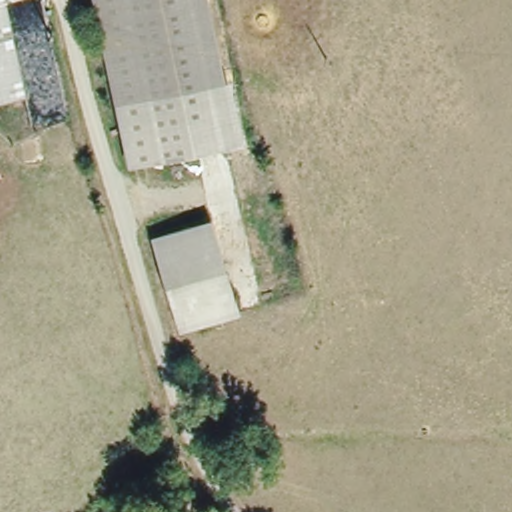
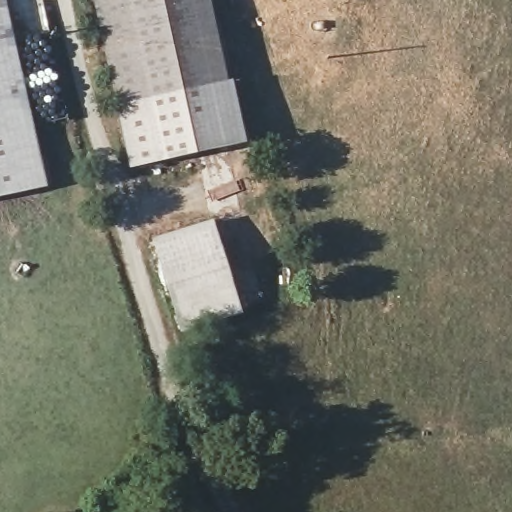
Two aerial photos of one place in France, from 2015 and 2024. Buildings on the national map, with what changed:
unchanged [(1,0),(21,94),(0,97),(0,0),(1,0)]
unchanged [(199,0),(206,35),(119,85),(98,0),(199,0)]
unchanged [(218,0),(223,24),(233,80),(219,87),(206,35),(199,0),(218,0)]
unchanged [(219,87),(231,147),(136,168),(119,85),(206,35),(219,87)]
new [(26,92),(47,188),(0,198),(0,97),(21,94),(26,92)]
unchanged [(209,223),(239,316),(180,333),(151,241),(209,223)]

